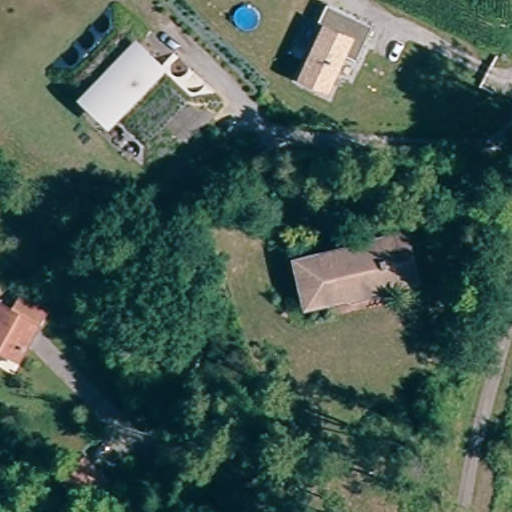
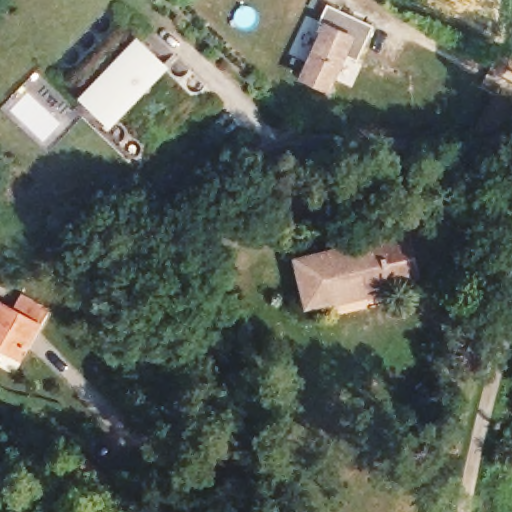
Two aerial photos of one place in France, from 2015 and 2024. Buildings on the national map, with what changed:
unchanged [(301,79),(302,76),(325,30),(318,27),(327,9),(372,30),(355,65),(343,59),(328,89),(327,92),(301,79)]
unchanged [(161,61),(109,110),(105,106),(86,86),(121,54),(139,38),(161,61)]
unchanged [(406,276),(388,281),(386,275),(361,283),(363,288),(347,292),(345,286),(334,289),(337,297),(308,305),(295,262),(318,254),(321,264),(347,257),(344,247),(353,244),(356,254),(376,248),(373,238),(401,229),(406,250),(399,252),(406,276)]
unchanged [(0,347),(0,304),(13,311),(20,298),(45,312),(20,358),(0,347)]
unchanged [(88,458),(110,479),(93,497),(71,477),(88,458)]

